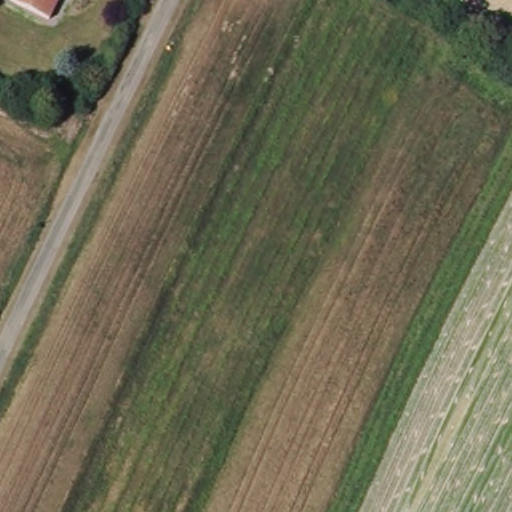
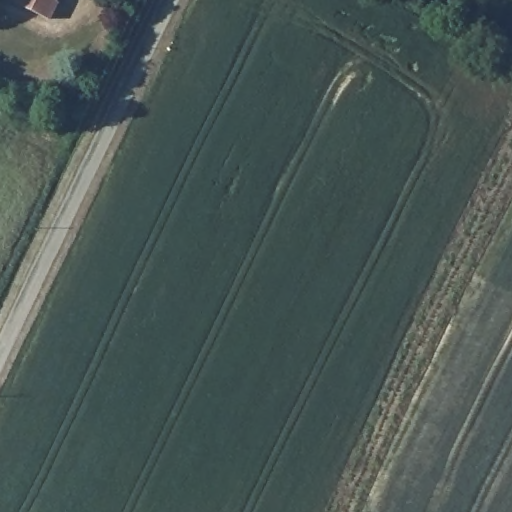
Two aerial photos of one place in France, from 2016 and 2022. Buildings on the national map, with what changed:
unchanged [(49,7),(51,9),(44,24),(1,3),(2,0),(52,0),(51,2),(49,7)]

